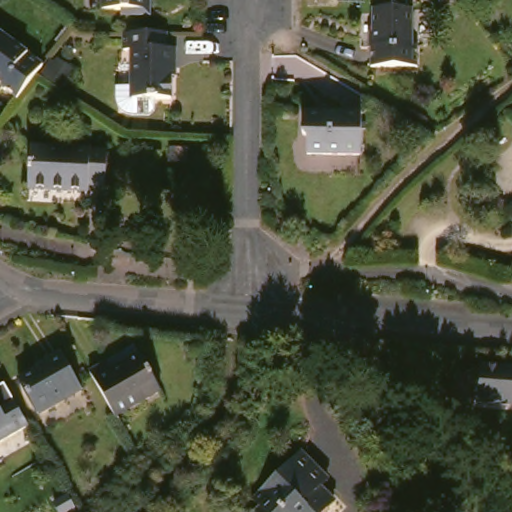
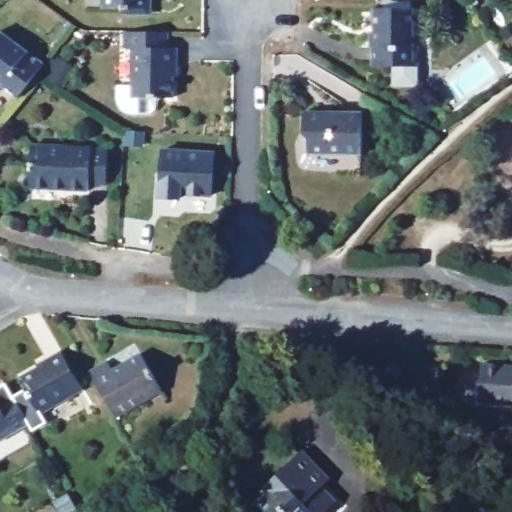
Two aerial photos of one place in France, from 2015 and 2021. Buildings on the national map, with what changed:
unchanged [(130,15),(130,10),(110,10),(111,0),(159,0),(159,16),(130,15)]
unchanged [(421,9),(419,45),(427,45),(426,66),(378,64),(379,45),(380,7),(421,9)]
unchanged [(156,111),(140,111),(134,111),(127,108),(125,102),(124,96),(124,84),(140,84),(141,48),(131,48),(131,29),(155,30),(175,30),(175,46),(185,46),(185,64),(180,64),(180,96),(162,95),(162,106),(156,111)]
unchanged [(42,73),(22,99),(5,86),(7,84),(0,79),(0,36),(4,31),(48,65),(42,73)]
unchanged [(370,112),(369,155),(315,154),(315,139),(312,132),(312,111),(370,112)]
unchanged [(44,142),(115,146),(115,180),(96,179),(96,189),(36,185),(38,142),(44,142)]
new [(165,153),(216,155),(215,197),(183,196),(183,201),(164,201),(165,153)]
unchanged [(25,378),(55,360),(54,359),(66,351),(88,386),(45,412),(25,378)]
unchanged [(111,360),(114,362),(118,369),(145,352),(167,389),(122,416),(95,370),(111,360)]
unchanged [(512,368),(512,404),(487,403),(489,366),(512,368)]
unchanged [(2,441),(0,436),(0,392),(11,386),(34,423),(2,441)]
unchanged [(321,488),(335,504),(328,512),(262,512),(267,508),(259,499),(307,453),(331,479),(321,488)]

